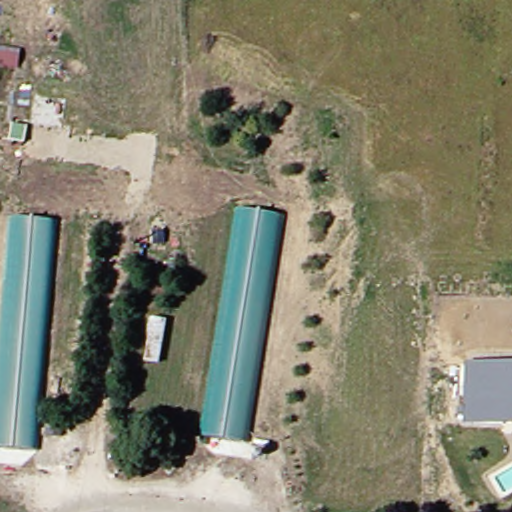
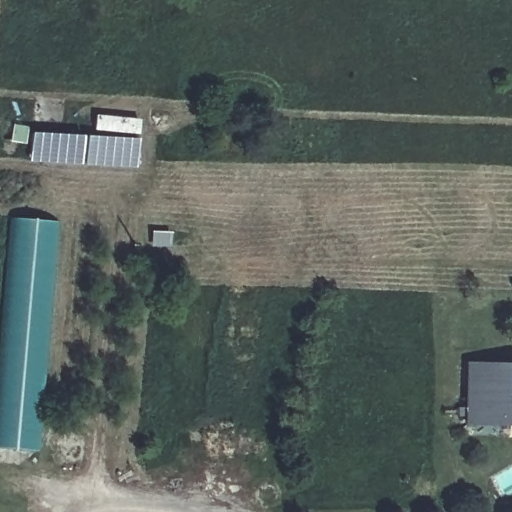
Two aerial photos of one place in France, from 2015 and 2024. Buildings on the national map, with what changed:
demolished [(88,159),(47,150),(46,144),(5,135),(0,133),(0,109),(90,129),(94,131),(88,159)]
new [(139,168),(29,161),(30,132),(95,135),(96,115),(141,118),(139,168)]
demolished [(252,205),(298,217),(239,439),(194,428),(252,205)]
unchanged [(26,452),(0,447),(0,331),(21,215),(68,226),(26,452)]
unchanged [(512,363),(512,426),(464,426),(465,363),(512,363)]

